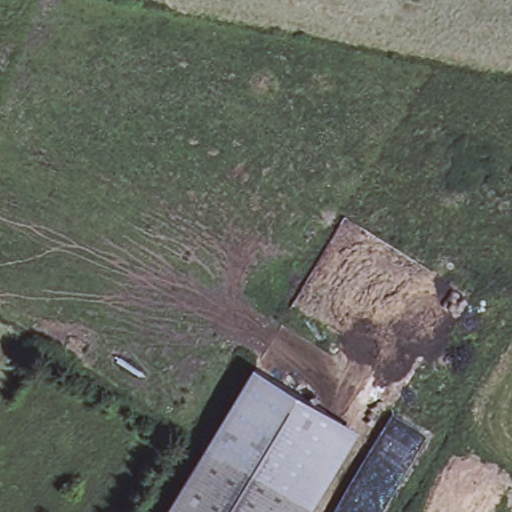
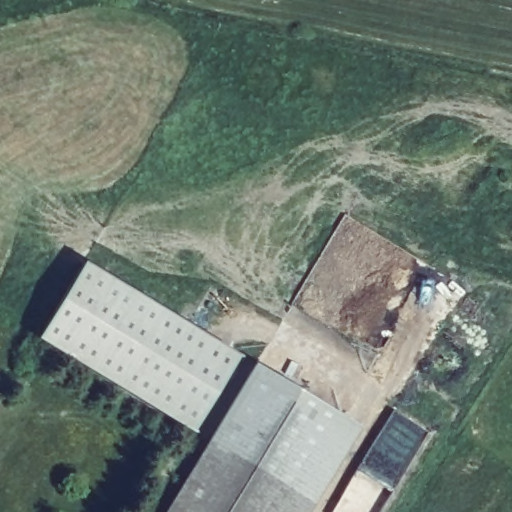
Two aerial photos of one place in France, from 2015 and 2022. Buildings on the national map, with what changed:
new [(38,338),(86,261),(239,355),(194,432),(38,338)]
unchanged [(345,421),(302,498),(215,446),(259,369),(345,421)]
new [(302,498),(345,421),(360,429),(315,505),(311,512),(293,512),(302,498)]
unchanged [(302,498),(293,512),(175,512),(215,446),(302,498)]

